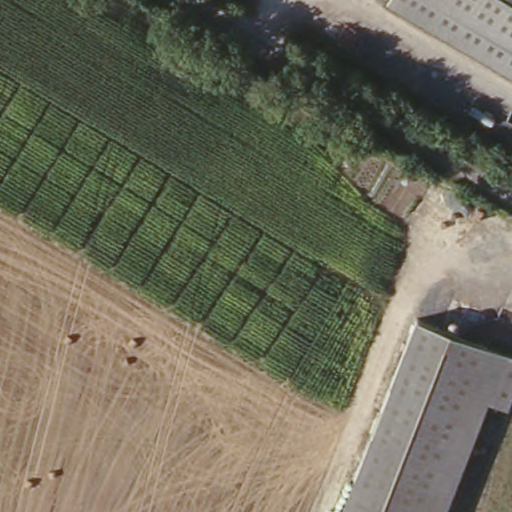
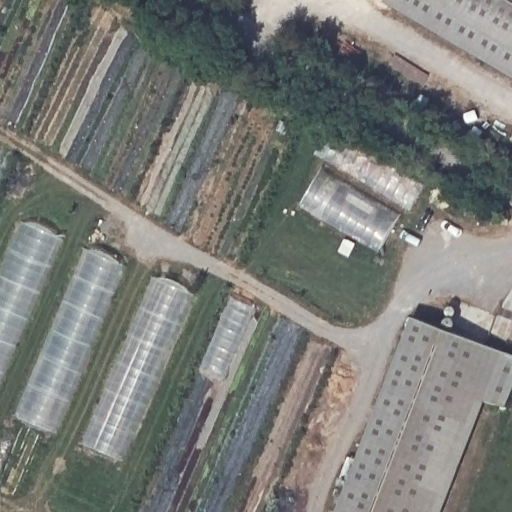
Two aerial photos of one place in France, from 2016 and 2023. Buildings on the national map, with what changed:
unchanged [(512,0),(512,74),(392,3),(393,0),(512,0)]
new [(429,181),(408,214),(322,164),(344,134),(429,181)]
new [(402,215),(378,254),(299,209),(324,169),(402,215)]
new [(0,389),(0,274),(22,223),(63,240),(0,389)]
new [(127,265),(59,435),(15,419),(87,249),(127,265)]
new [(195,295),(124,463),(84,446),(155,278),(195,295)]
unchanged [(512,359),(512,394),(506,411),(486,406),(447,512),(340,512),(412,323),(512,359)]

